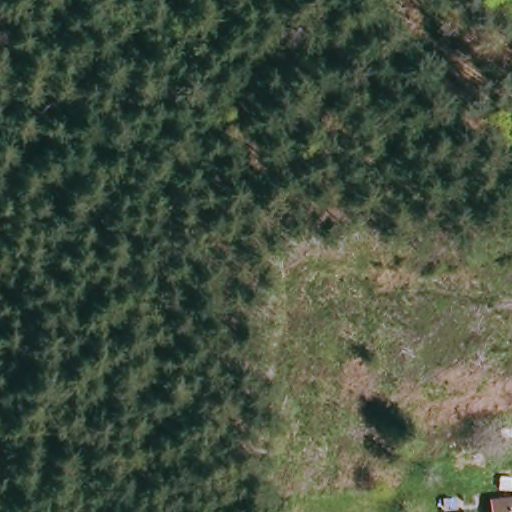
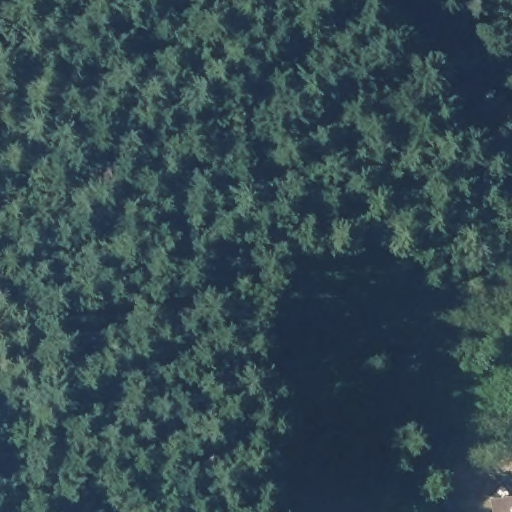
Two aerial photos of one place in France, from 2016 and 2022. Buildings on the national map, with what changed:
unchanged [(512,509),(512,512),(511,512),(512,509)]

